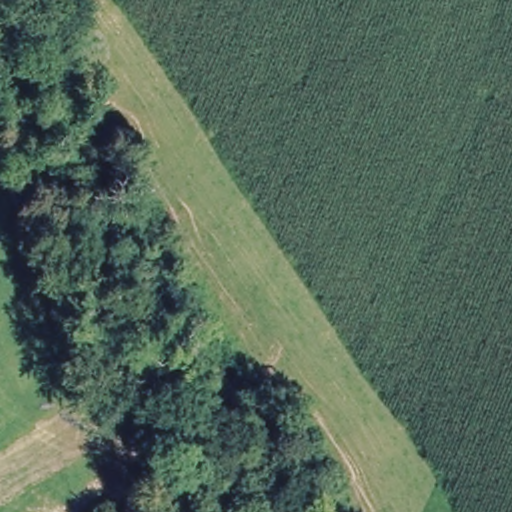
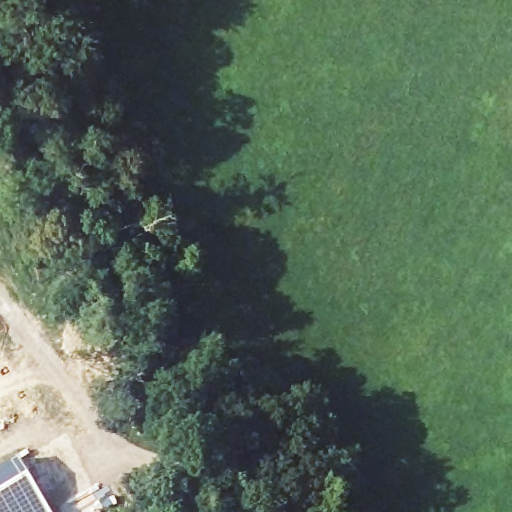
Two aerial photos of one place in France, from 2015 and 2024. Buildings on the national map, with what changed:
new [(14,459),(48,512),(0,512),(0,468),(14,459)]

